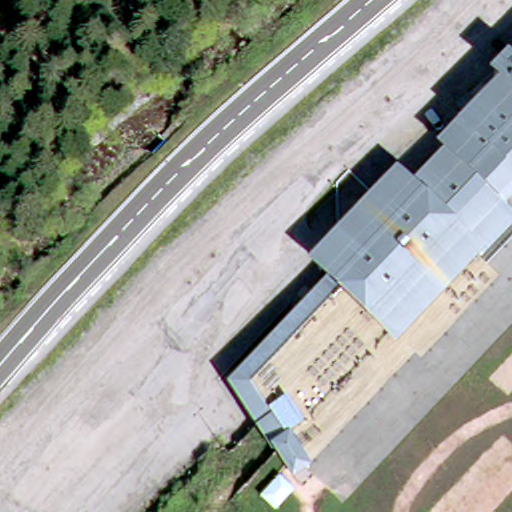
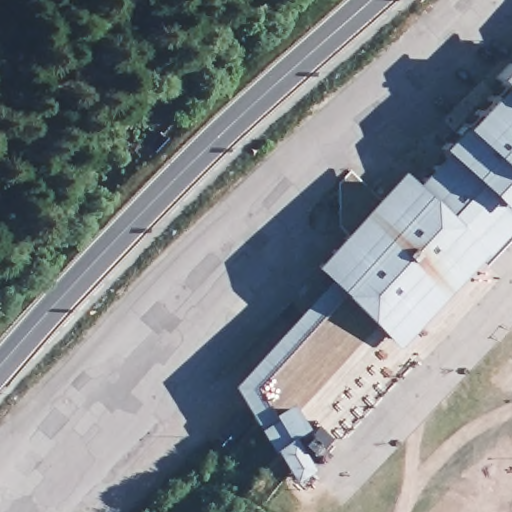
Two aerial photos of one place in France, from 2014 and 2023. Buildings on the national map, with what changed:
unchanged [(512,213),(512,228),(487,252),(481,259),(501,278),(422,363),(415,357),(312,467),(293,481),(273,450),(228,386),(328,280),(311,266),(400,171),(412,183),(443,153),(439,148),(459,128),(499,82),(492,75),(508,57),(512,60),(512,205),(507,209),(512,213)]

